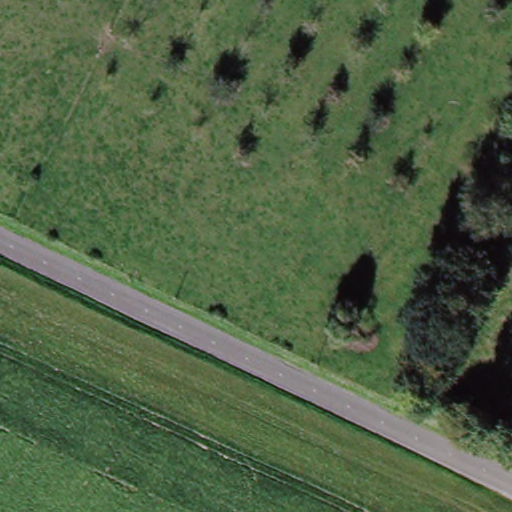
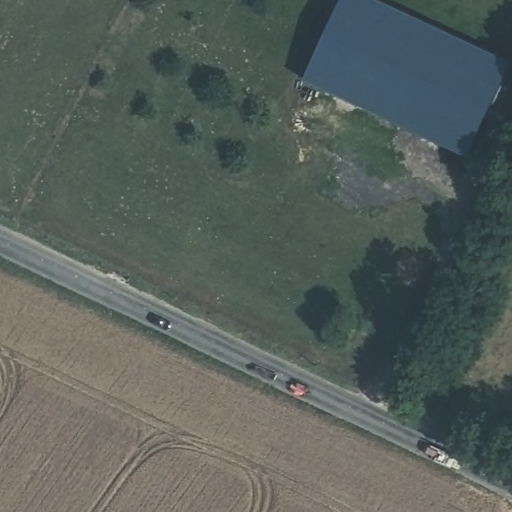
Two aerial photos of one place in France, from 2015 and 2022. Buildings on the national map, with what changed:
new [(471,155),(304,78),(341,0),(382,0),(512,61),(512,66),(471,155)]

